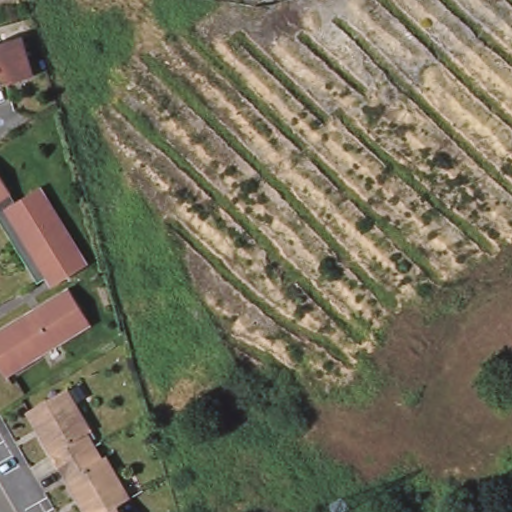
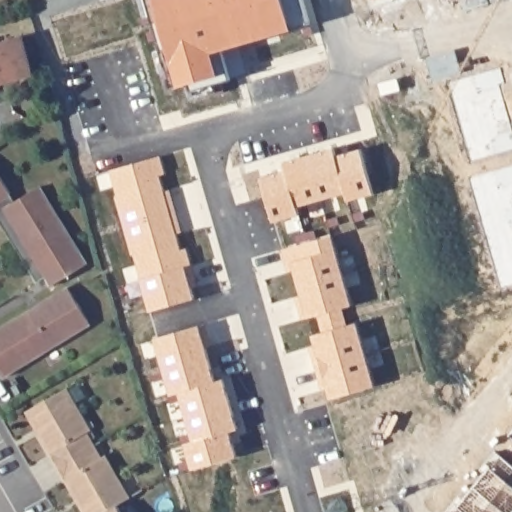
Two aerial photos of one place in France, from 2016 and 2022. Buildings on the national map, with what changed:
new [(239,46),(247,76),(189,92),(187,85),(170,90),(144,0),(300,0),(308,27),(239,46)]
new [(375,0),(392,0),(377,5),(375,0)]
unchanged [(0,83),(0,47),(22,41),(33,81),(15,86),(2,90),(0,83)]
new [(399,81),(401,91),(382,96),(380,86),(399,81)]
new [(286,171),(284,163),(334,148),(336,156),(361,149),(374,194),(348,201),(346,193),(297,207),(299,215),(274,223),(261,178),(286,171)]
new [(159,175),(166,199),(164,192),(170,191),(172,198),(180,225),(182,232),(176,234),(174,227),(181,250),(186,249),(195,280),(190,281),(195,300),(151,312),(134,254),(132,255),(116,198),(117,197),(110,171),(160,156),(165,174),(159,175)]
unchanged [(16,194),(11,197),(16,204),(45,186),(92,264),(56,286),(50,278),(42,283),(1,215),(0,215),(0,169),(16,194)]
new [(321,334),(319,326),(317,316),(302,321),(298,306),(304,305),(292,264),(287,266),(283,251),(332,237),(352,307),(341,310),(344,318),(346,327),(357,324),(365,355),(316,370),(312,356),(318,354),(313,336),(321,334)]
unchanged [(73,288),(96,324),(10,377),(0,360),(0,333),(73,288)]
new [(205,325),(209,340),(204,341),(208,358),(164,371),(155,339),(205,325)]
new [(365,355),(375,387),(331,400),(326,382),(320,384),(316,370),(365,355)]
new [(208,358),(215,382),(179,393),(171,396),(164,371),(208,358)]
new [(215,382),(224,380),(231,405),(186,418),(179,393),(215,382)]
unchanged [(82,500),(44,435),(31,413),(39,408),(71,389),(96,431),(91,434),(106,458),(110,457),(135,499),(122,507),(124,512),(89,512),(82,500)]
new [(231,405),(238,430),(229,432),(193,442),(186,418),(231,405)]
new [(193,442),(229,432),(237,458),(192,470),(185,445),(193,442)]

